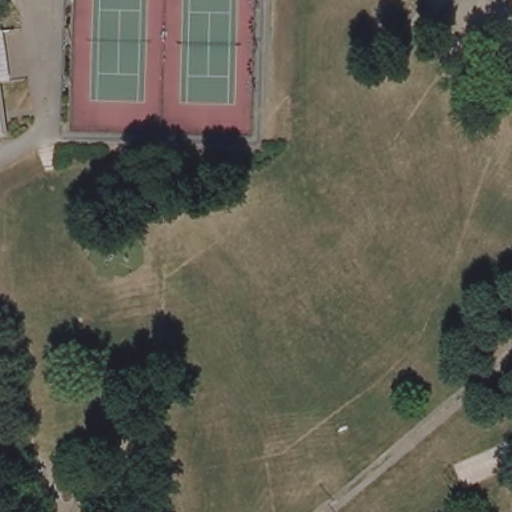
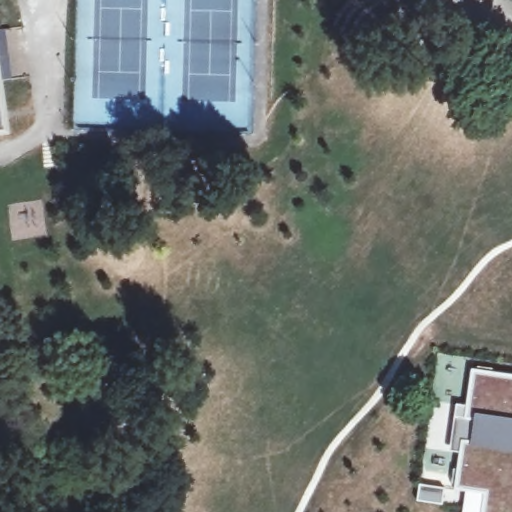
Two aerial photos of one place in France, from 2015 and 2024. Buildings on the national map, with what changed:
unchanged [(7,132),(0,132),(0,87),(7,132)]
new [(486,493),(454,488),(460,453),(449,451),(457,405),(468,407),(474,372),(512,377),(512,512),(483,512),(486,493)]

